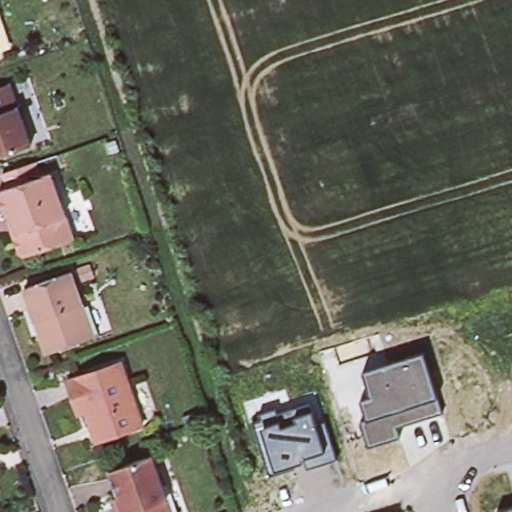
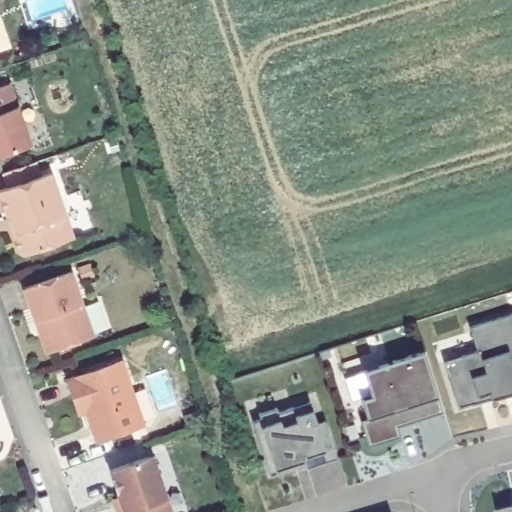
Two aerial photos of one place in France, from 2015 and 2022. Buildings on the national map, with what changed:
unchanged [(28,141),(0,151),(0,82),(6,80),(28,141)]
unchanged [(75,240),(24,259),(0,193),(10,190),(5,176),(37,164),(42,177),(51,174),(75,240)]
unchanged [(62,268),(85,334),(45,348),(37,345),(33,331),(36,330),(32,316),(27,316),(17,284),(62,268)]
new [(460,410),(445,363),(479,353),(471,329),(512,316),(512,397),(492,402),(482,404),(460,410)]
unchanged [(400,437),(369,446),(361,422),(367,418),(361,398),(370,396),(363,372),(424,352),(437,397),(442,412),(397,426),(400,437)]
unchanged [(122,363),(143,427),(97,442),(87,412),(80,415),(68,382),(122,363)]
unchanged [(307,468),(305,457),(301,458),(302,463),(276,471),(270,475),(254,422),(261,420),(260,413),(279,408),(281,412),(310,403),(314,411),(317,423),(325,421),(337,458),(307,468)]
unchanged [(105,467),(147,452),(169,512),(114,512),(109,496),(115,493),(105,467)]
unchanged [(498,511),(512,508),(512,512),(498,512),(498,511)]

